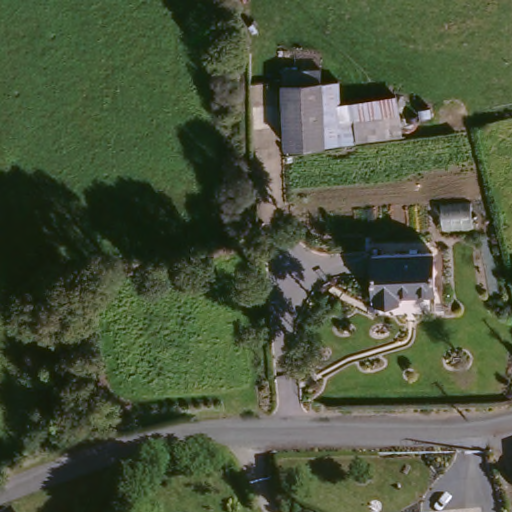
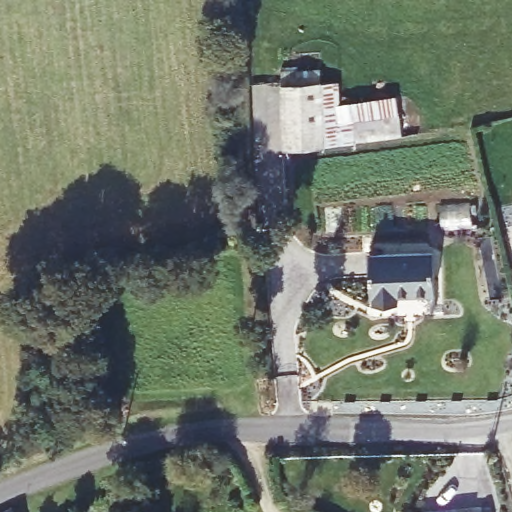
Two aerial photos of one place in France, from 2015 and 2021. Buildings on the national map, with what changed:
unchanged [(323,140),(282,144),(278,79),(316,76),(317,90),(336,88),(338,109),(394,102),(398,135),(323,140)]
unchanged [(370,255),(430,255),(430,295),(394,295),(394,305),(370,305),(370,255)]
unchanged [(512,438),(512,443),(510,439),(512,438)]

